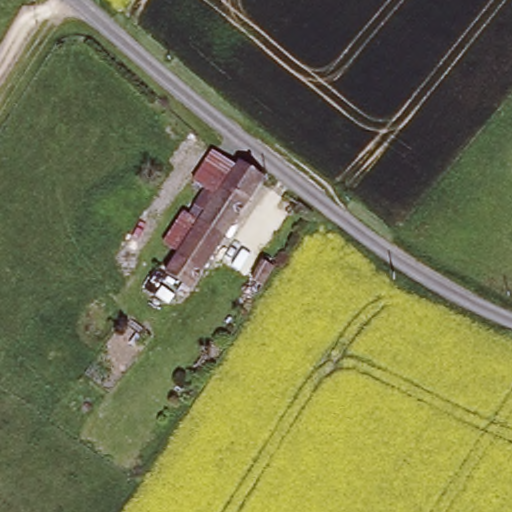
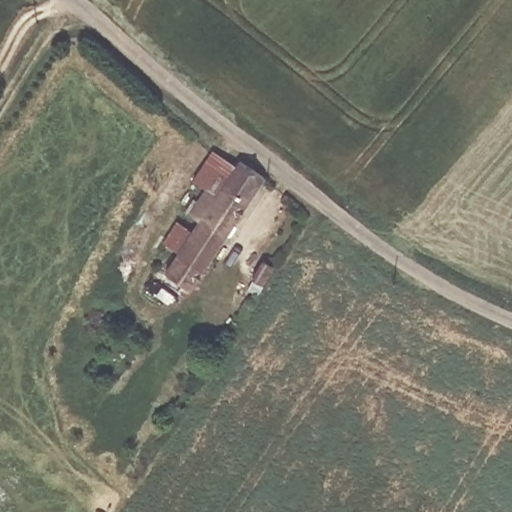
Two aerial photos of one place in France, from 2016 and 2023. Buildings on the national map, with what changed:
unchanged [(238,167),(217,197),(207,190),(192,179),(215,150),(238,167)]
unchanged [(165,273),(176,258),(182,250),(171,242),(188,217),(198,225),(206,214),(196,206),(207,190),(217,197),(238,167),(242,163),(262,179),(200,274),(190,289),(165,273)]
unchanged [(272,270),(260,287),(252,280),(263,262),(272,270)]

